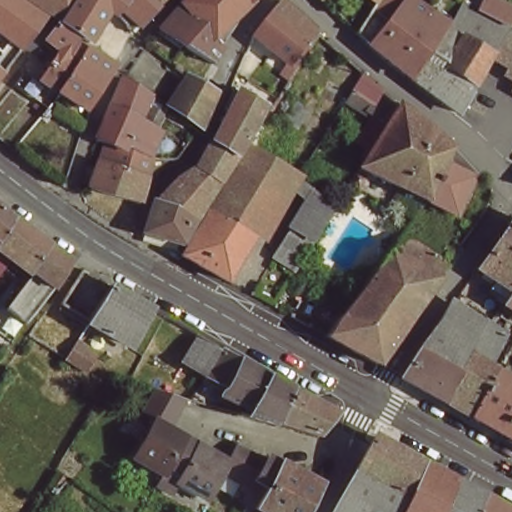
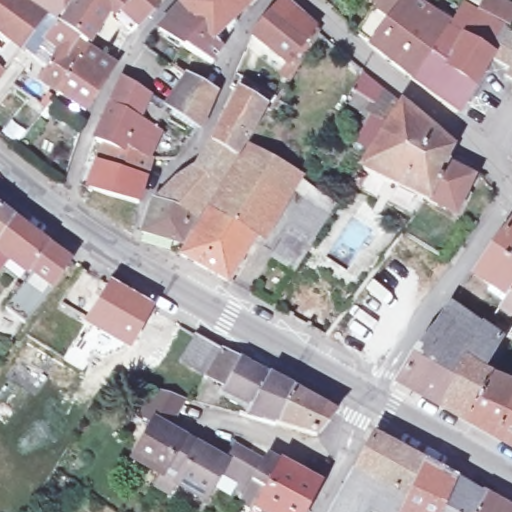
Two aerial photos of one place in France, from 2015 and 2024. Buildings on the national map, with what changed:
unchanged [(15,44),(0,32),(0,0),(15,0),(45,19),(53,25),(55,22),(69,0),(162,0),(155,7),(130,36),(107,15),(100,24),(93,31),(83,44),(110,62),(98,82),(83,110),(53,94),(36,83),(50,60),(43,54),(34,65),(23,56),(10,77),(0,93),(0,51),(8,55),(15,44)]
unchanged [(21,0),(69,0),(55,22),(21,0)]
unchanged [(231,33),(223,48),(213,64),(185,48),(182,46),(156,32),(181,6),(187,0),(251,0),(228,27),(231,33)]
unchanged [(361,0),(376,0),(371,7),(361,0)]
unchanged [(407,1),(428,15),(445,27),(448,30),(449,30),(460,10),(468,15),(497,31),(499,32),(510,39),(512,40),(512,88),(501,83),(505,75),(487,66),(453,117),(415,90),(407,83),(391,70),(371,52),(407,1)]
unchanged [(321,35),(310,50),(304,46),(290,66),(252,37),(271,16),(284,2),(321,35)]
unchanged [(138,94),(130,115),(125,126),(144,137),(136,160),(142,162),(135,206),(85,187),(99,142),(90,138),(105,102),(113,83),(115,79),(138,94)]
unchanged [(171,110),(183,80),(184,79),(198,85),(213,95),(199,128),(171,110)]
unchanged [(369,119),(350,105),(363,82),(381,100),(369,119)]
unchanged [(508,97),(512,90),(512,100),(508,97)]
unchanged [(151,203),(158,205),(178,185),(196,170),(200,165),(211,145),(236,92),(264,107),(248,133),(233,157),(218,182),(196,218),(181,241),(145,234),(151,203)]
unchanged [(369,164),(355,155),(376,117),(392,125),(399,115),(448,155),(441,167),(447,170),(475,186),(453,225),(425,210),(369,185),(359,180),(369,164)]
unchanged [(251,146),(292,172),(296,175),(227,281),(181,256),(251,146)]
unchanged [(362,190),(356,200),(349,196),(350,195),(355,186),(362,190)]
unchanged [(291,275),(271,262),(289,226),(285,222),(306,191),(332,206),(291,275)]
unchanged [(25,329),(6,314),(30,277),(5,260),(0,257),(0,213),(11,221),(13,223),(48,250),(68,265),(30,322),(25,329)]
unchanged [(497,313),(508,298),(474,273),(512,223),(512,323),(497,313)]
demolished [(440,275),(396,340),(366,381),(316,350),(346,309),(354,298),(391,249),(440,275)]
new [(0,257),(5,260),(7,261),(0,271),(0,257)]
unchanged [(146,311),(125,350),(87,327),(110,290),(146,311)]
unchanged [(483,375),(488,376),(485,382),(512,392),(512,449),(467,425),(450,415),(440,408),(396,383),(401,375),(415,353),(423,357),(441,324),(448,311),(478,330),(497,341),(483,375)]
unchanged [(94,352),(83,371),(65,358),(76,340),(94,352)]
unchanged [(221,353),(294,395),(333,418),(321,443),(278,428),(251,418),(254,410),(226,400),(230,392),(206,380),(183,367),(196,340),(221,353)]
unchanged [(238,500),(245,490),(216,473),(200,500),(172,483),(166,493),(151,485),(156,475),(126,456),(146,421),(135,413),(151,387),(186,398),(167,429),(181,437),(181,438),(181,441),(193,448),(195,445),(222,462),(235,441),(270,460),(271,457),(315,483),(300,512),(258,512),(238,500)]
unchanged [(339,490),(370,434),(371,431),(423,461),(425,461),(444,472),(455,478),(476,491),(480,493),(512,511),(512,512),(382,512),(367,504),(363,512),(327,512),(339,490)]

